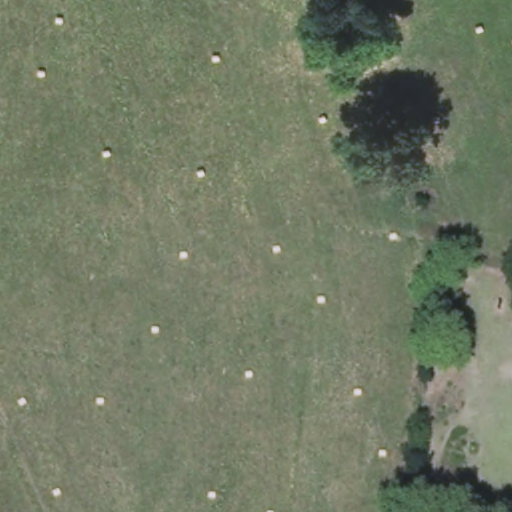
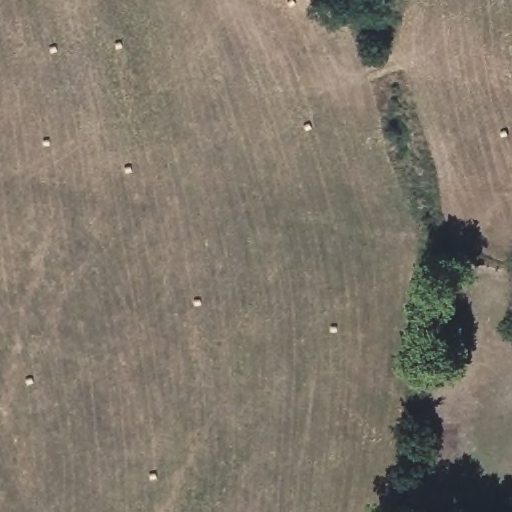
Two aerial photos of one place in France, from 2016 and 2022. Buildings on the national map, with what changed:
unchanged [(512,294),(512,306),(510,305),(512,294)]

